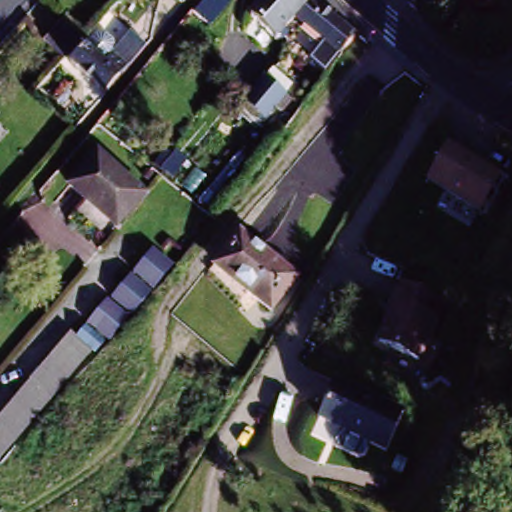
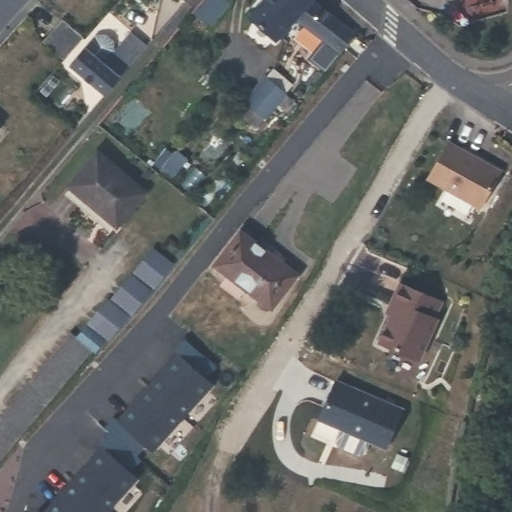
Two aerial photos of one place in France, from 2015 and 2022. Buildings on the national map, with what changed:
unchanged [(183,3),(180,0),(186,0),(183,3)]
unchanged [(204,0),(225,0),(228,3),(209,27),(193,14),(204,0)]
unchanged [(306,4),(291,21),(290,22),(278,35),(270,44),(245,21),(265,0),(308,0),(309,1),(306,4)]
unchanged [(291,21),(306,4),(349,39),(318,76),(307,67),(323,48),(290,22),(291,21)]
unchanged [(74,49),(55,71),(32,51),(52,29),(74,49)]
unchanged [(137,55),(110,87),(95,104),(60,74),(75,57),(75,58),(86,45),(95,44),(103,52),(103,61),(103,62),(120,42),(137,55)]
unchanged [(257,125),(239,110),(246,101),(246,100),(266,76),(273,68),(291,83),(284,92),(285,92),(257,125)]
unchanged [(505,172),(485,208),(433,178),(453,143),(505,172)]
unchanged [(116,225),(69,185),(97,152),(145,193),(116,225)]
unchanged [(293,275),(266,310),(207,265),(235,230),(293,275)]
unchanged [(133,272),(153,248),(172,263),(153,287),(133,272)]
unchanged [(112,298),(131,274),(151,290),(131,314),(112,298)]
unchanged [(446,301),(439,318),(442,319),(423,360),(384,343),(397,315),(392,312),(397,301),(405,283),(446,301)]
unchanged [(88,324),(107,300),(127,315),(108,339),(88,324)]
unchanged [(54,351),(70,332),(76,337),(86,326),(104,341),(95,352),(90,349),(0,457),(0,415),(54,351)]
new [(215,384),(153,451),(117,419),(177,352),(215,384)]
unchanged [(390,453),(325,423),(341,386),(407,415),(390,453)]
demolished [(15,449),(40,430),(35,424),(53,411),(70,434),(28,467),(15,449)]
new [(108,512),(43,512),(42,511),(102,446),(139,478),(108,512)]
demolished [(175,463),(161,489),(149,512),(113,512),(147,448),(175,463)]

